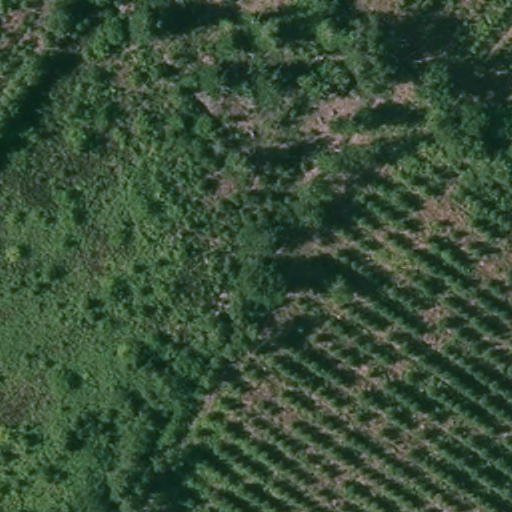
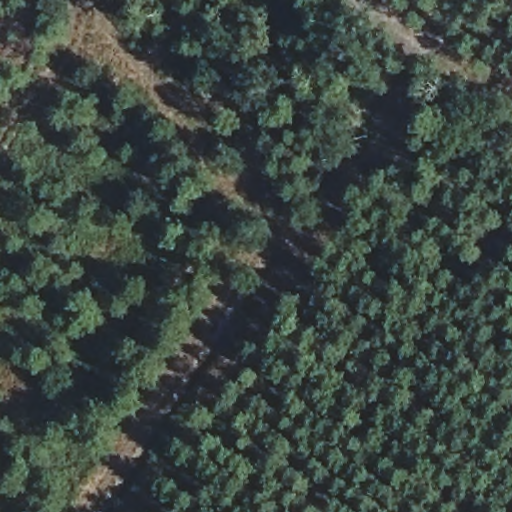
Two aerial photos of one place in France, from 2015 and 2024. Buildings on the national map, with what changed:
[]

